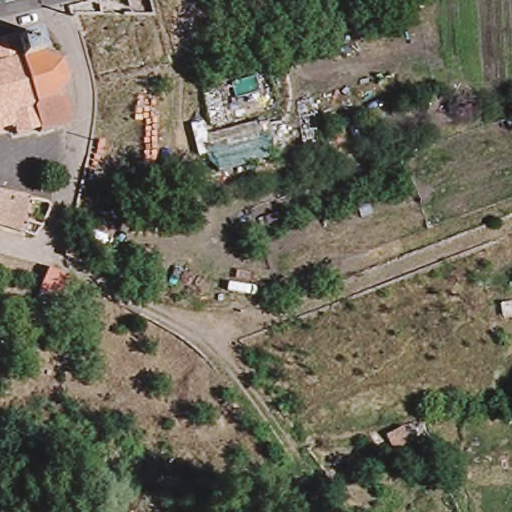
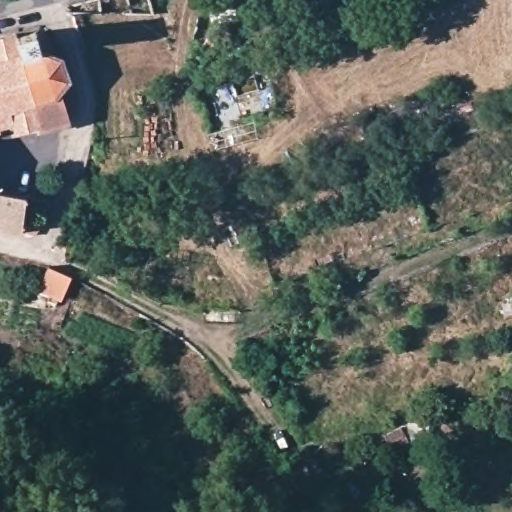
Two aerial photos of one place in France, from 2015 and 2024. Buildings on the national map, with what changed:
unchanged [(87,0),(97,0),(101,14),(75,15),(68,14),(65,6),(87,0)]
unchanged [(123,13),(120,0),(150,0),(153,12),(123,13)]
unchanged [(86,19),(89,29),(83,30),(80,21),(86,19)]
unchanged [(65,57),(67,61),(66,64),(73,79),(75,78),(76,81),(63,94),(74,122),(43,132),(42,130),(18,136),(16,129),(12,130),(11,126),(3,127),(3,131),(0,132),(0,32),(19,29),(20,33),(40,29),(43,51),(60,59),(65,57)]
unchanged [(28,218),(47,223),(41,230),(36,233),(0,224),(0,189),(32,195),(28,218)]
unchanged [(65,253),(68,236),(95,244),(92,266),(67,257),(65,253)]
unchanged [(49,271),(71,279),(64,302),(50,298),(40,294),(45,282),(49,271)]
unchanged [(503,320),(500,303),(512,301),(512,319),(503,320)]
unchanged [(425,430),(410,443),(400,431),(415,418),(425,430)]

